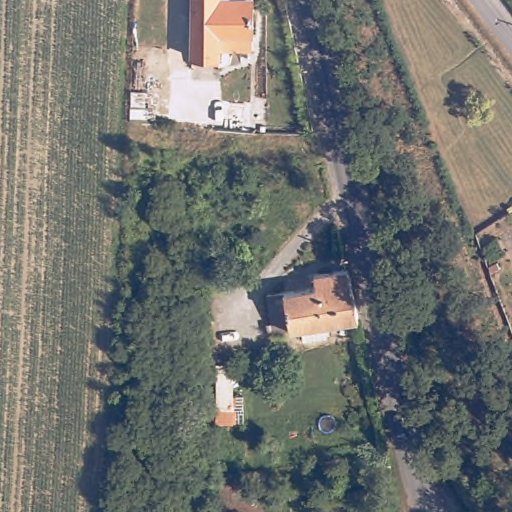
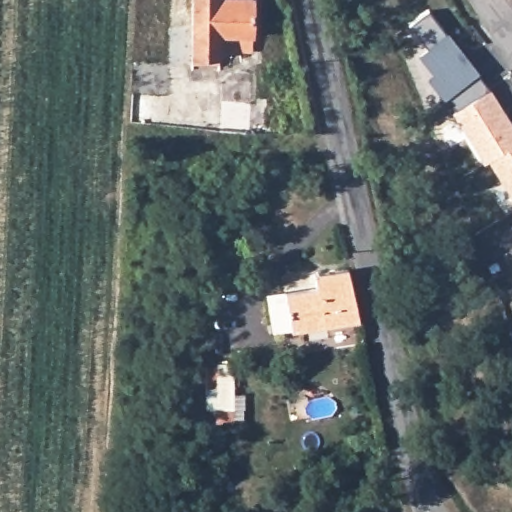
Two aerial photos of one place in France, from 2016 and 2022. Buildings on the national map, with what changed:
unchanged [(220,52),(220,59),(192,57),(196,0),(222,0),(256,3),(255,39),(254,55),(220,52)]
new [(483,163),(452,112),(455,110),(446,97),(443,99),(427,78),(433,74),(418,54),(427,48),(410,24),(427,10),(445,33),(447,31),(479,71),(476,74),(488,88),(490,87),(512,122),(512,199),(488,161),(483,163)]
new [(220,109),(247,112),(245,132),(219,130),(220,109)]
unchanged [(306,338),(305,326),(275,331),(268,296),(320,286),(318,273),(333,271),(340,270),(352,268),(358,302),(361,316),(329,322),(332,333),(306,338)]
unchanged [(231,365),(232,395),(217,396),(216,366),(231,365)]

